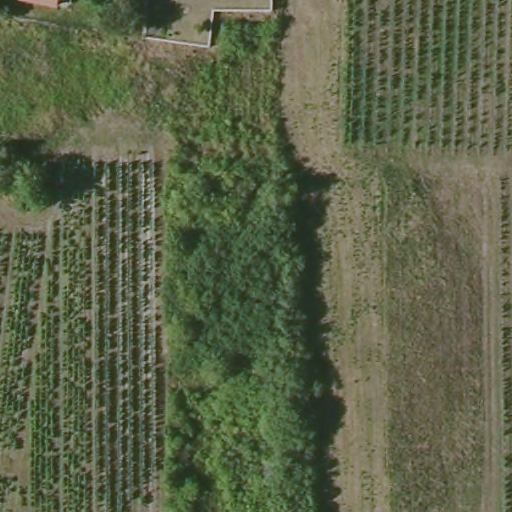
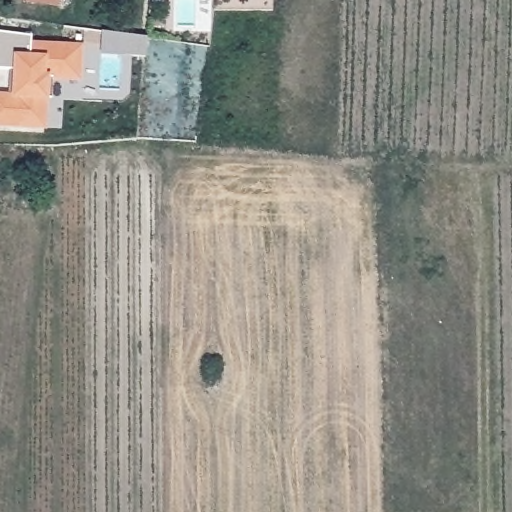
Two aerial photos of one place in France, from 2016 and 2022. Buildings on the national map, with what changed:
unchanged [(53,1),(51,0),(53,0),(53,1)]
new [(0,94),(10,95),(12,69),(0,69),(0,34),(30,38),(30,44),(81,48),(80,82),(47,80),(45,131),(0,128),(0,94)]

